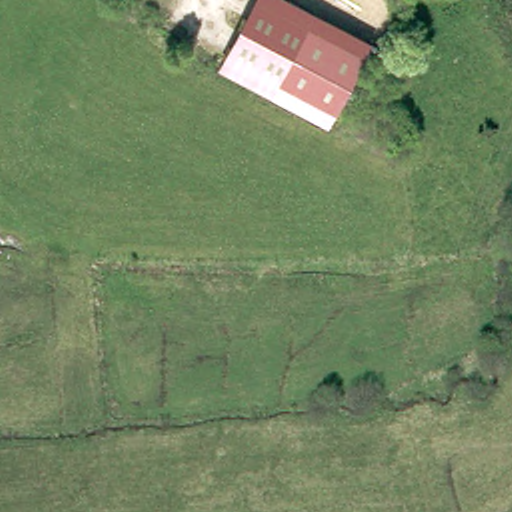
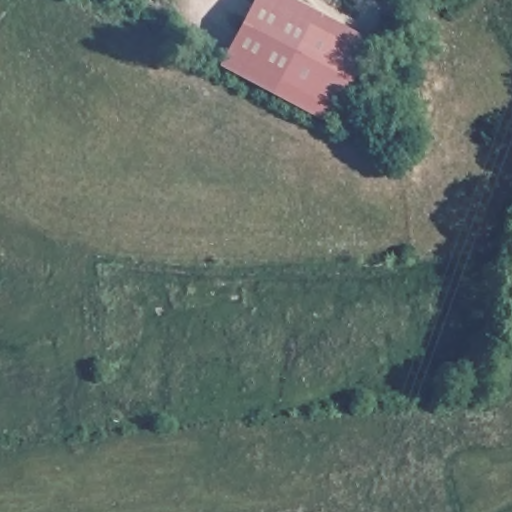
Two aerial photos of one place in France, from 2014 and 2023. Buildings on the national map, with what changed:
unchanged [(302,0),(373,38),(335,123),(220,62),(253,0),(302,0)]

